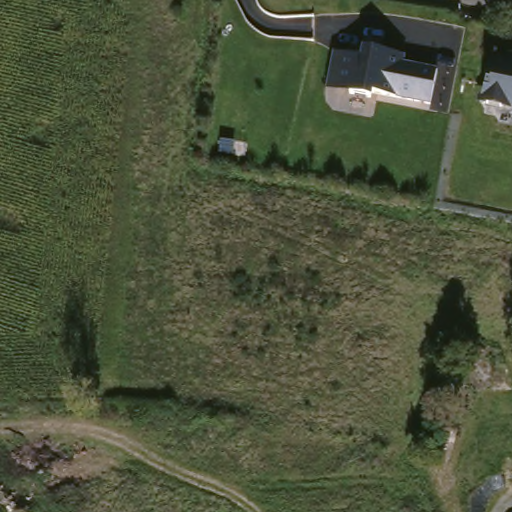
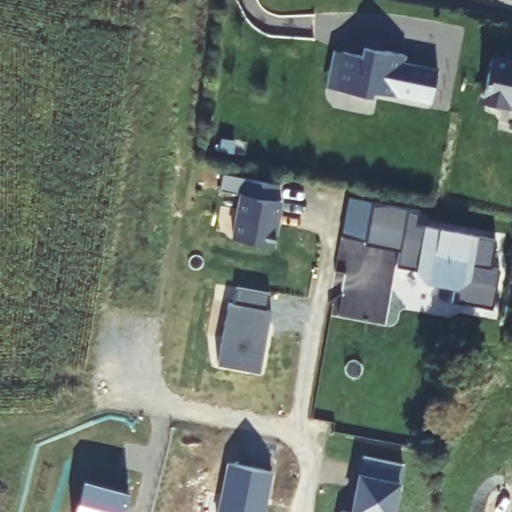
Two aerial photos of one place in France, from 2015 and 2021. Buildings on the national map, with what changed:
unchanged [(365,43),(366,35),(381,38),(380,46),(405,51),(404,59),(438,66),(432,100),(372,87),(371,92),(350,88),(326,83),(334,46),(343,48),(362,52),(365,43)]
unchanged [(488,54),(512,58),(512,105),(479,101),(488,54)]
new [(241,193),(242,178),(279,185),(275,202),(283,202),(275,247),(232,238),(241,193)]
new [(452,302),(456,290),(426,285),(416,270),(398,267),(400,250),(365,245),(374,203),(419,211),(416,226),(496,239),(490,268),(498,270),(491,309),(491,310),(452,302)]
new [(235,305),(237,288),(269,295),(265,310),(271,311),(260,373),(217,366),(229,304),(235,305)]
new [(360,474),(362,457),(403,466),(400,484),(394,512),(352,512),(360,474)]

